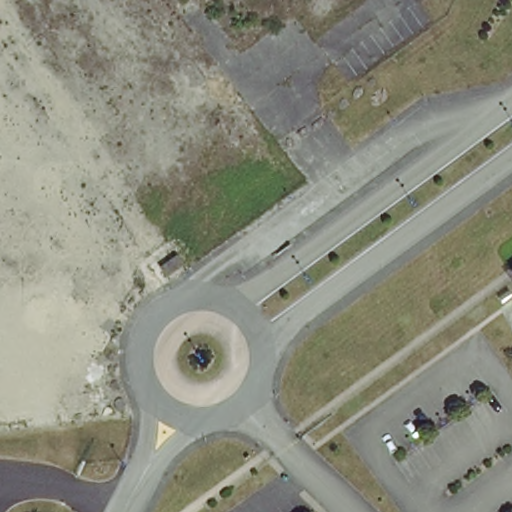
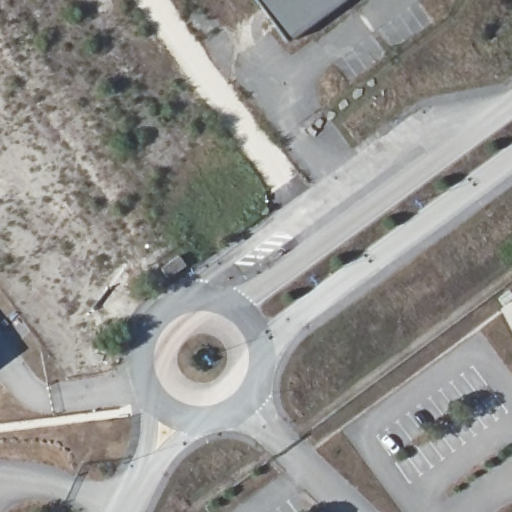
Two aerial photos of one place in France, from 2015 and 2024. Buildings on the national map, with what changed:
new [(287,42),(255,0),(345,0),(287,42)]
demolished [(178,269),(184,279),(167,291),(160,282),(178,269)]
new [(0,365),(0,362),(2,364),(0,365)]

